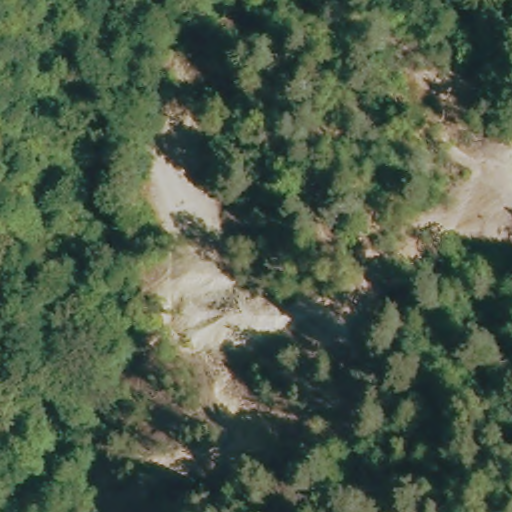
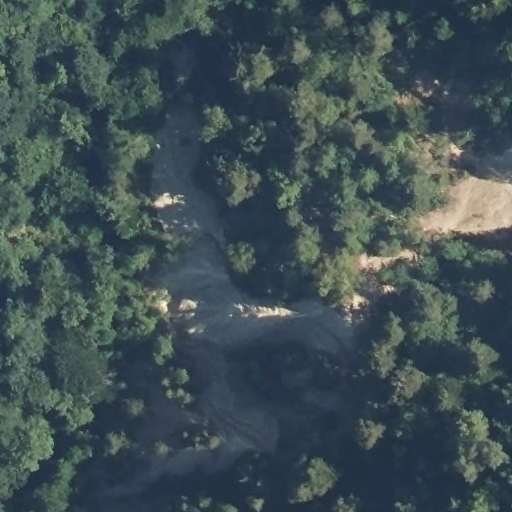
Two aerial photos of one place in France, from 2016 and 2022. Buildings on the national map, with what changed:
[]

